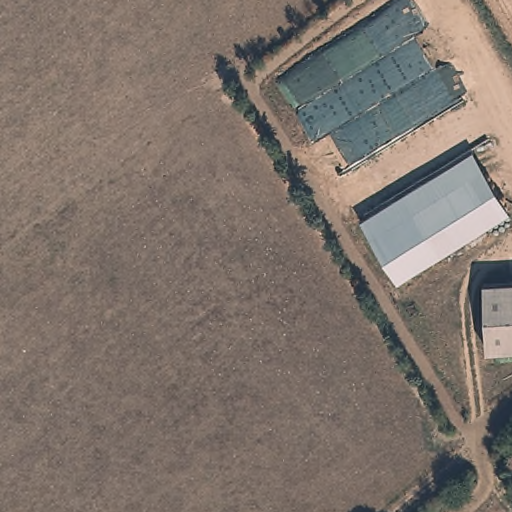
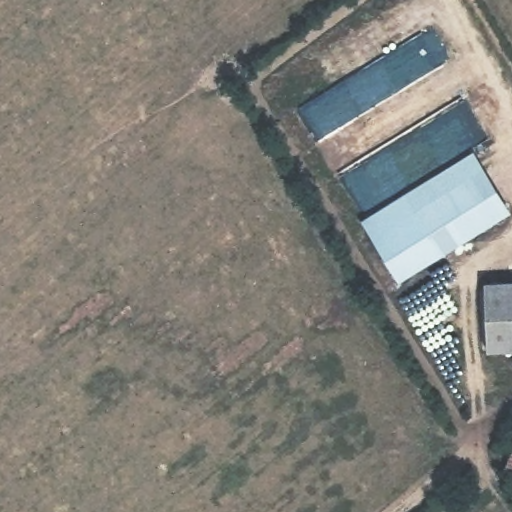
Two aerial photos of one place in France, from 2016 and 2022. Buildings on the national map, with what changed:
unchanged [(510,213),(397,283),(361,220),(472,151),(510,213)]
unchanged [(487,346),(484,280),(512,278),(512,345),(487,346)]
unchanged [(506,468),(512,453),(512,471),(506,468)]

